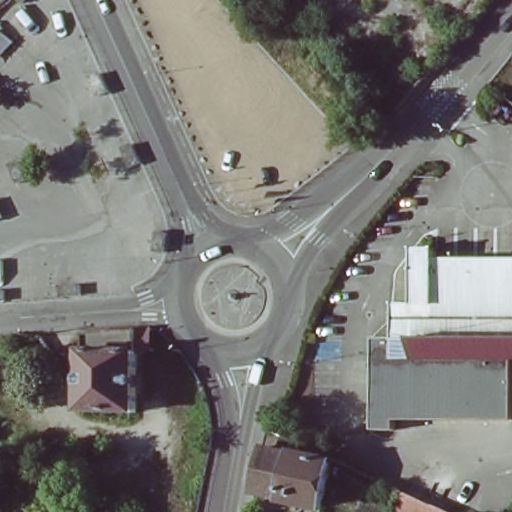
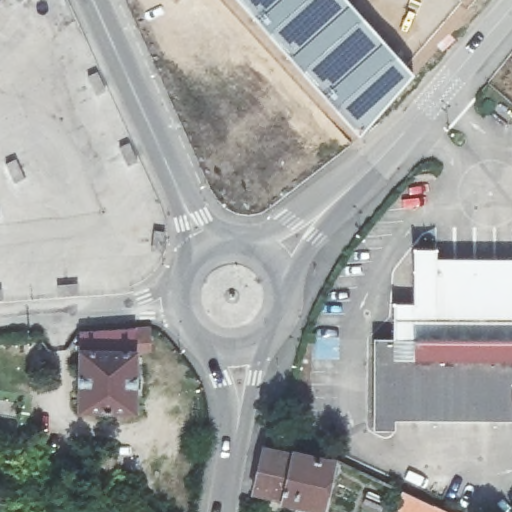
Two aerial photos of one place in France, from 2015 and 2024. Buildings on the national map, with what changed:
new [(415,72),(358,135),(237,0),(350,0),(415,72)]
unchanged [(395,339),(395,317),(415,316),(419,244),(443,245),(442,259),(512,260),(512,423),(393,418),(393,436),(374,436),(374,362),(374,338),(395,339)]
unchanged [(139,409),(86,407),(88,331),(141,327),(141,351),(139,409)]
unchanged [(334,461),(322,512),(318,512),(252,496),(267,429),(334,461)]
unchanged [(451,512),(402,512),(411,493),(451,512)]

